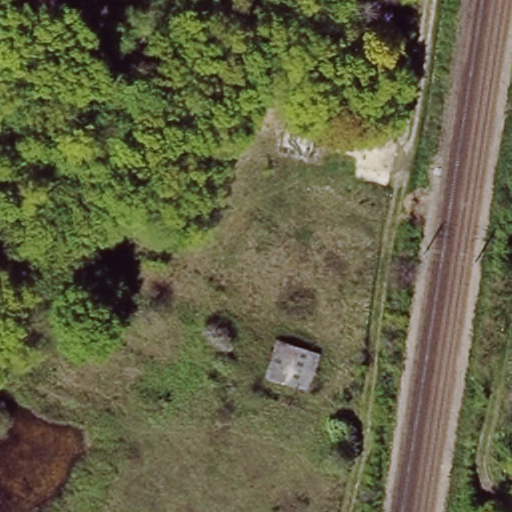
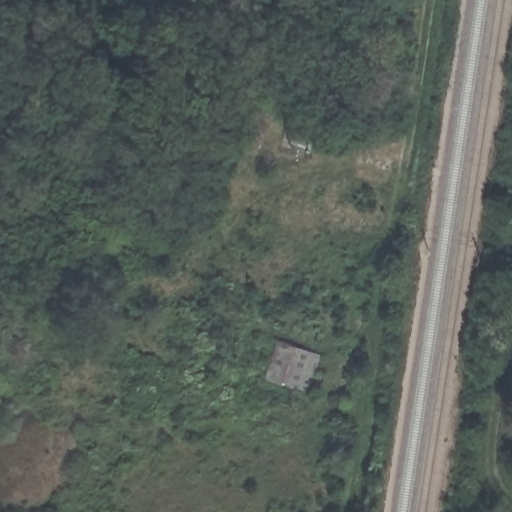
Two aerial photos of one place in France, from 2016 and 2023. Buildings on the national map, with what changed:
unchanged [(322,353),(309,390),(273,376),(285,342),(322,353)]

